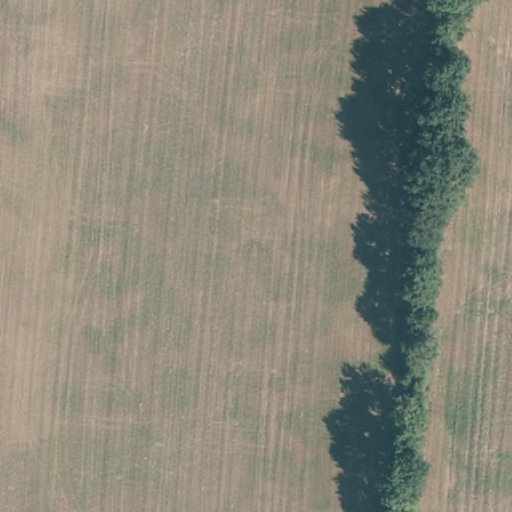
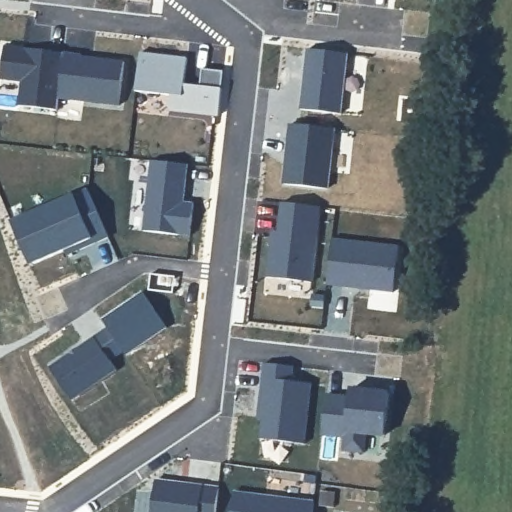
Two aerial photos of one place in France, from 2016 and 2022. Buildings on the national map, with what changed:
new [(120,106),(59,98),(57,110),(20,106),(23,82),(1,79),(5,45),(80,53),(81,56),(126,61),(120,106)]
new [(282,184),(288,124),(316,127),(318,111),(300,109),(307,49),(347,52),(340,114),(336,114),(335,130),(328,189),(282,184)]
new [(185,83),(200,85),(201,70),(222,72),(218,116),(168,110),(169,94),(135,90),(139,51),(187,57),(185,83)]
new [(185,202),(194,204),(190,235),(144,230),(151,161),(190,164),(185,202)]
new [(66,256),(65,251),(30,266),(10,222),(88,189),(108,236),(66,256)]
new [(267,277),(272,231),(278,231),(281,202),(320,207),(311,282),(267,277)]
new [(327,285),(331,238),(400,245),(396,293),(327,285)]
new [(111,361),(118,369),(73,401),(49,366),(108,326),(126,351),(111,361)]
new [(260,438),(262,420),(258,419),(263,363),(295,367),(292,381),(312,382),(306,443),(260,438)]
new [(386,437),(367,435),(366,454),(341,452),(343,438),(320,436),(323,393),(350,397),(350,387),(390,391),(386,437)]
new [(151,512),(155,478),(219,487),(215,512),(151,512)]
new [(314,501),(313,512),(229,512),(231,492),(314,501)]

